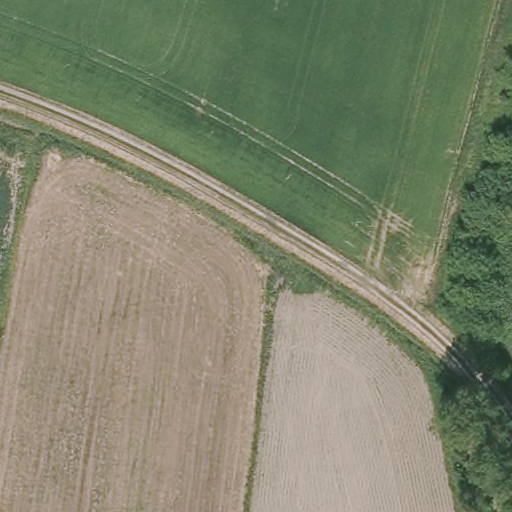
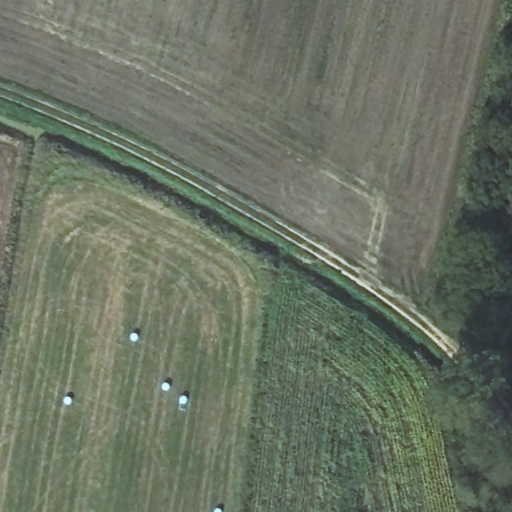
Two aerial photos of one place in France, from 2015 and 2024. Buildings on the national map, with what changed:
[]

